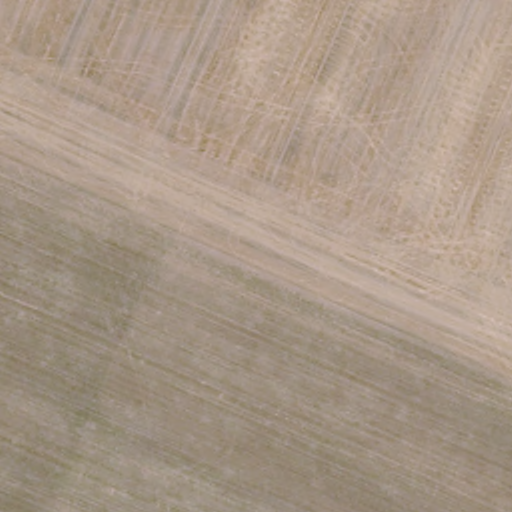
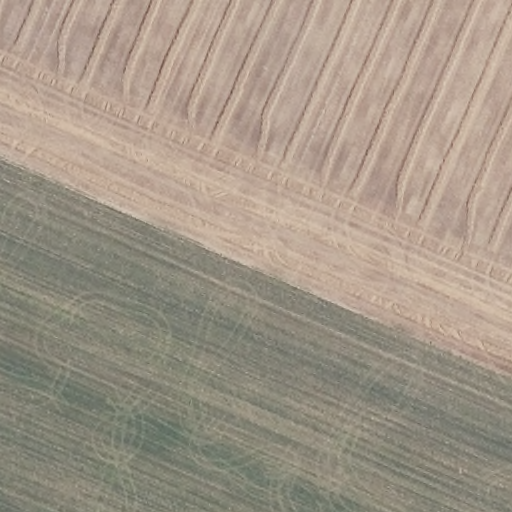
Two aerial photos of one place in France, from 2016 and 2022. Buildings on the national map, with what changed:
[]

